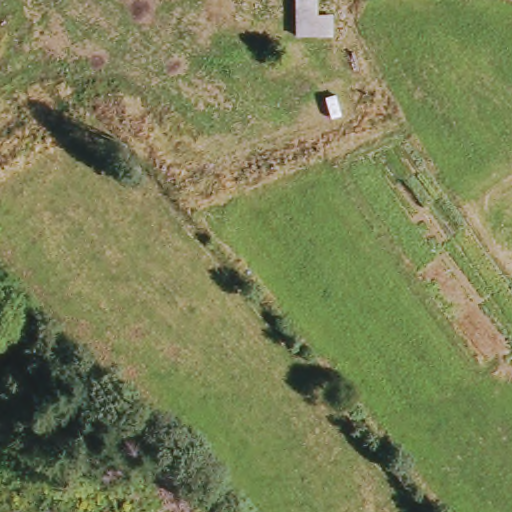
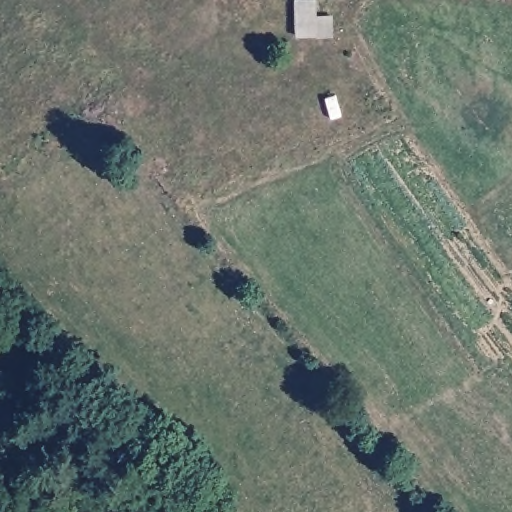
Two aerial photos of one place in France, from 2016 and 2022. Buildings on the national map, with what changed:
unchanged [(306,57),(307,20),(325,21),(325,38),(341,40),(341,58),(306,57)]

